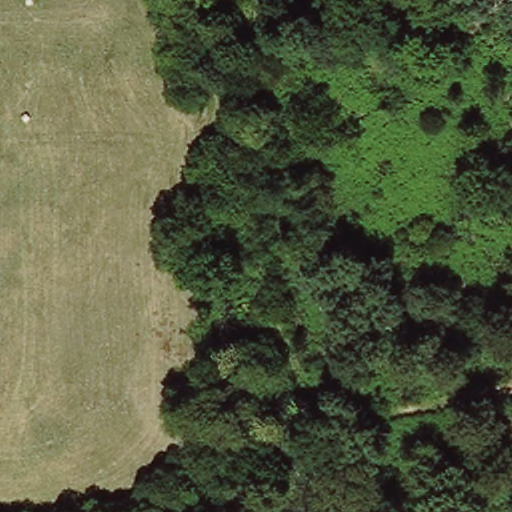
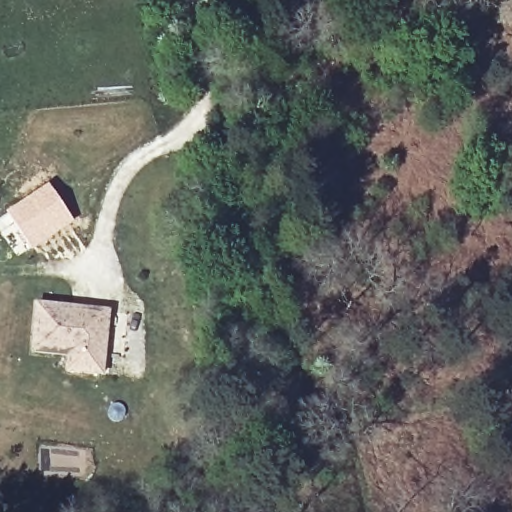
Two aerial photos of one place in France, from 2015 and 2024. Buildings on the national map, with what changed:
new [(49,183),(76,220),(31,249),(17,256),(0,231),(0,217),(6,212),(49,183)]
new [(111,310),(105,377),(66,372),(67,357),(30,354),(35,303),(111,310)]

